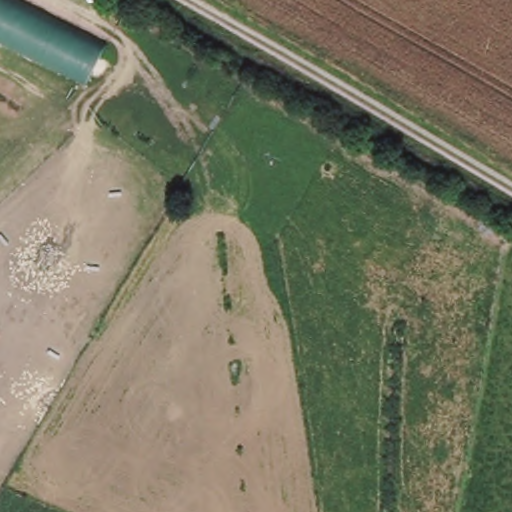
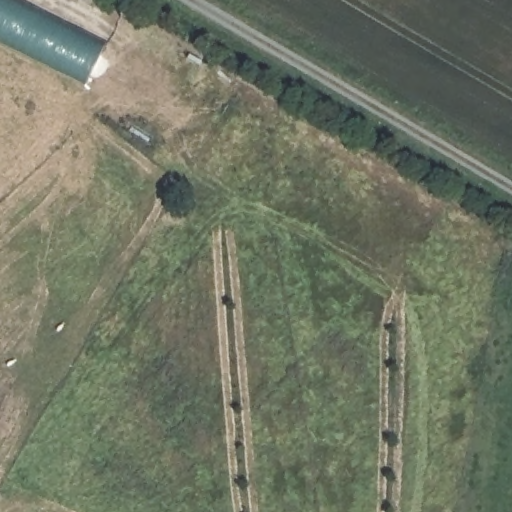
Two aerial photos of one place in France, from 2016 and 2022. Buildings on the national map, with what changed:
unchanged [(0,46),(0,0),(21,0),(104,44),(86,86),(0,46)]

